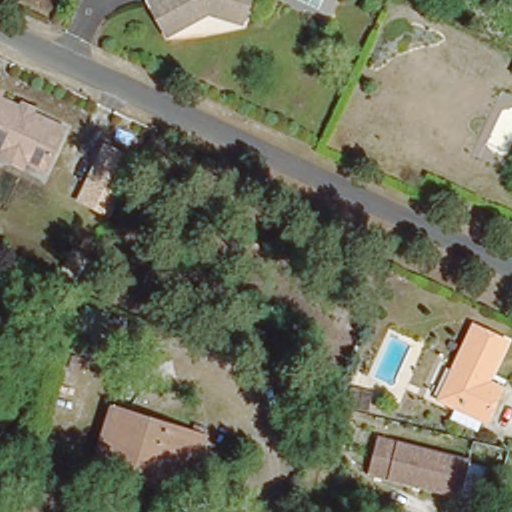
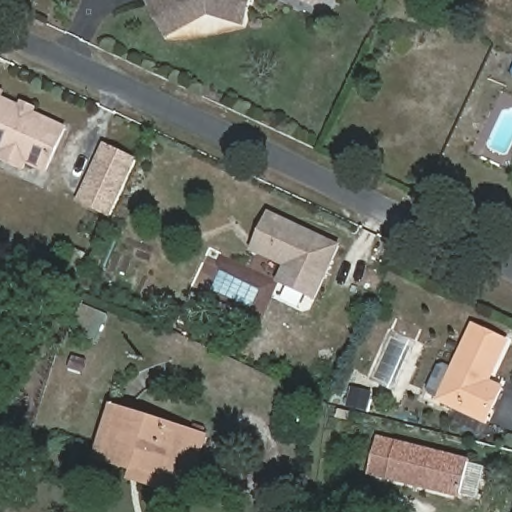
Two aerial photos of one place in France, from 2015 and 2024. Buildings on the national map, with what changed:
unchanged [(244,24),(207,11),(170,33),(152,0),(251,0),(244,24)]
unchanged [(0,90),(0,89),(1,89),(0,90)]
unchanged [(45,169),(25,159),(22,166),(0,155),(0,150),(2,147),(0,146),(0,95),(64,126),(45,169)]
new [(111,218),(76,202),(102,142),(138,158),(111,218)]
new [(267,213),(337,246),(312,298),(277,281),(283,266),(250,250),(267,213)]
unchanged [(491,375),(486,372),(480,384),(498,392),(485,423),(437,402),(472,329),(481,334),(481,333),(506,346),(491,375)]
unchanged [(186,442),(176,475),(135,462),(134,465),(96,452),(112,403),(202,434),(199,446),(186,442)]
unchanged [(467,460),(465,469),(457,498),(365,473),(375,434),(417,446),(467,460)]
unchanged [(184,493),(131,475),(134,465),(135,462),(176,475),(186,442),(199,446),(184,493)]

